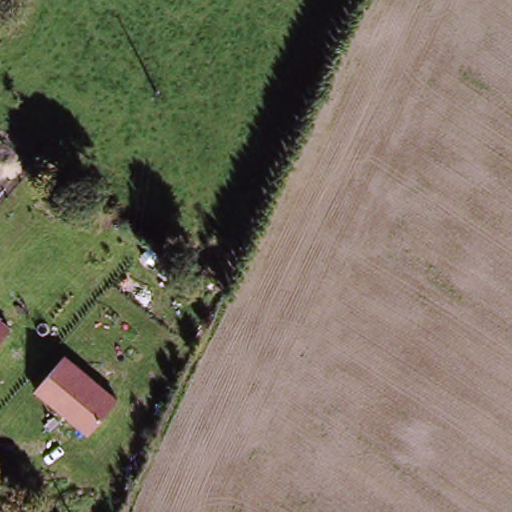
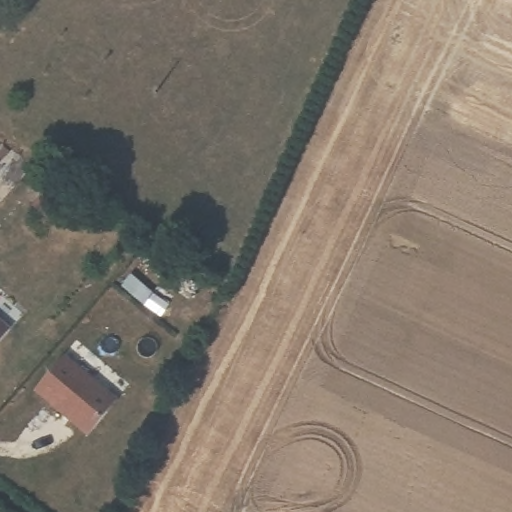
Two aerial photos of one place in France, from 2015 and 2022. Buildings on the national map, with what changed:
unchanged [(0,342),(0,319),(11,329),(0,342)]
unchanged [(67,355),(117,397),(89,433),(37,390),(67,355)]

